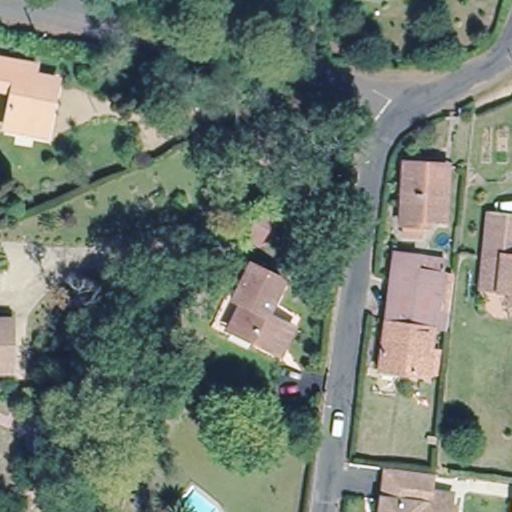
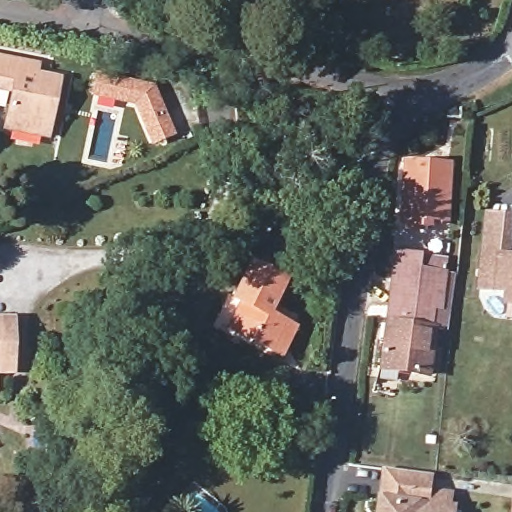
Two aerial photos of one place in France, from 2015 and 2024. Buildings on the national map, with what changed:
unchanged [(36,64),(34,75),(57,80),(45,135),(5,127),(12,91),(0,89),(0,57),(36,64)]
new [(132,105),(107,100),(110,87),(92,80),(95,72),(102,73),(101,77),(109,79),(110,74),(154,83),(175,135),(150,146),(132,105)]
unchanged [(448,168),(445,218),(430,217),(429,224),(405,223),(409,166),(448,168)]
unchanged [(512,213),(512,253),(485,248),(488,211),(512,213)]
unchanged [(265,216),(277,224),(265,245),(251,238),(265,216)]
unchanged [(433,326),(391,321),(392,313),(385,311),(392,256),(441,262),(441,271),(447,272),(453,273),(443,328),(433,326)]
unchanged [(283,349),(275,344),(257,336),(234,324),(239,315),(246,298),(238,293),(255,261),(287,278),(271,309),(288,318),(298,322),(283,349)]
unchanged [(392,313),(391,321),(433,326),(430,348),(438,350),(435,375),(378,369),(385,311),(392,313)]
unchanged [(10,320),(10,371),(0,371),(0,320),(10,320)]
unchanged [(411,474),(418,475),(426,476),(425,492),(446,493),(445,509),(450,510),(450,512),(377,512),(377,503),(380,471),(411,474)]

